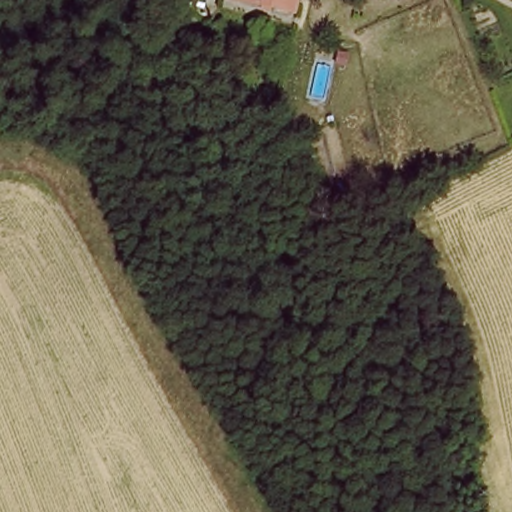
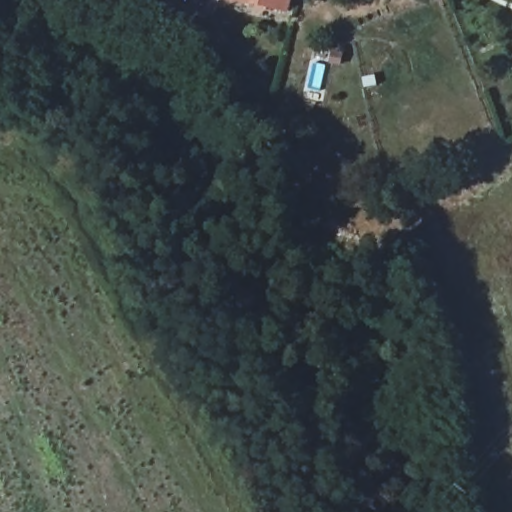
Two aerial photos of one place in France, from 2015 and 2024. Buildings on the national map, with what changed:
unchanged [(229,0),(298,0),(292,21),(228,4),(229,0)]

